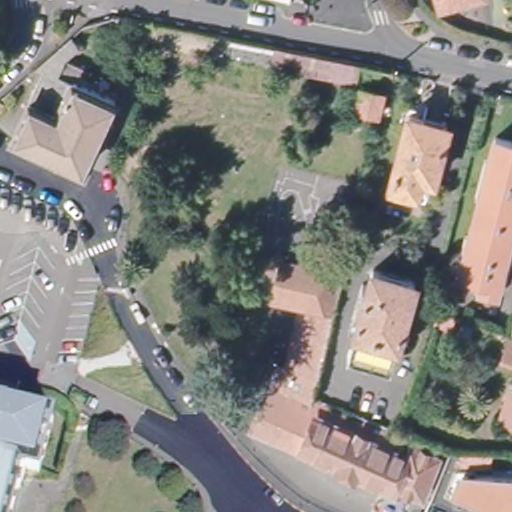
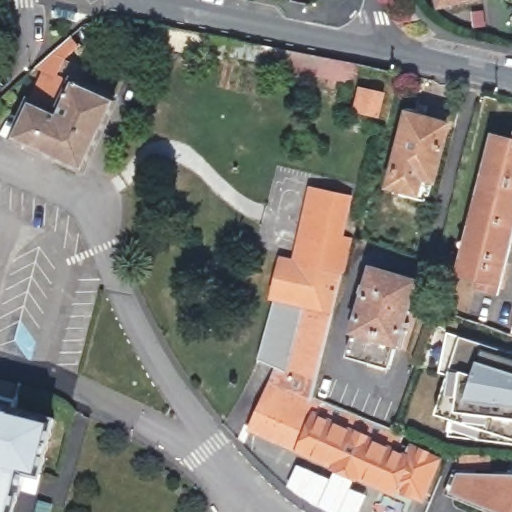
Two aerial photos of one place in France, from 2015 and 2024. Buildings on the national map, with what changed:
unchanged [(440,5),(438,0),(458,0),(440,5)]
unchanged [(110,97),(115,100),(83,166),(44,147),(42,150),(13,136),(46,69),(37,64),(76,30),(93,23),(97,30),(62,57),(54,72),(85,87),(87,82),(80,79),(87,64),(95,67),(96,64),(121,76),(110,97)]
unchanged [(156,24),(212,35),(208,56),(153,45),(156,24)]
unchanged [(232,39),(276,47),(272,63),(229,54),(232,39)]
unchanged [(366,113),(371,92),(378,94),(374,115),(366,113)]
unchanged [(427,194),(389,184),(407,114),(444,124),(427,194)]
unchanged [(492,135),(512,140),(512,204),(494,280),(458,272),(492,135)]
new [(292,263),(309,187),(354,195),(344,236),(354,239),(344,276),(292,263)]
unchanged [(336,307),(305,300),(304,305),(275,297),(284,262),(344,276),(336,307)]
unchanged [(414,282),(403,321),(409,322),(401,350),(396,347),(390,367),(348,356),(373,270),(414,282)]
unchanged [(304,305),(305,300),(336,307),(313,395),(304,391),(309,378),(285,368),(304,305)]
demolished [(449,323),(434,318),(438,307),(453,312),(449,323)]
new [(463,337),(512,352),(512,443),(450,435),(452,417),(437,412),(448,372),(441,371),(447,332),(463,337)]
demolished [(499,361),(506,337),(512,339),(512,365),(499,361)]
unchanged [(416,438),(413,447),(442,459),(425,497),(396,485),(394,491),(254,428),(281,366),(285,368),(309,378),(304,391),(313,395),(396,429),(416,438)]
demolished [(508,397),(511,388),(512,389),(512,414),(504,412),(508,397)]
unchanged [(15,410),(53,420),(40,474),(25,470),(20,490),(16,489),(10,512),(0,512),(0,392),(18,397),(15,410)]
unchanged [(461,492),(466,477),(512,479),(512,512),(510,512),(511,512),(461,492)]
new [(53,502),(51,512),(36,512),(39,499),(53,502)]

